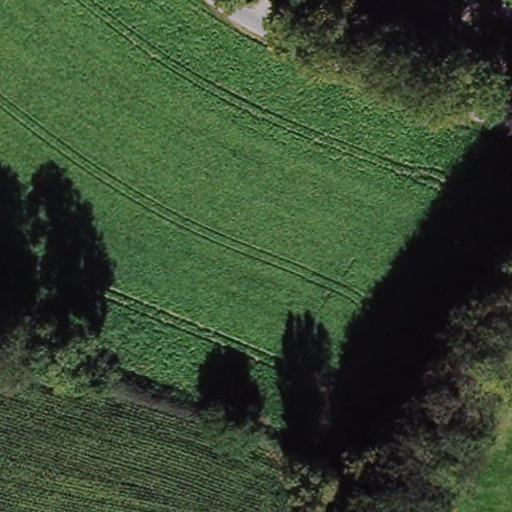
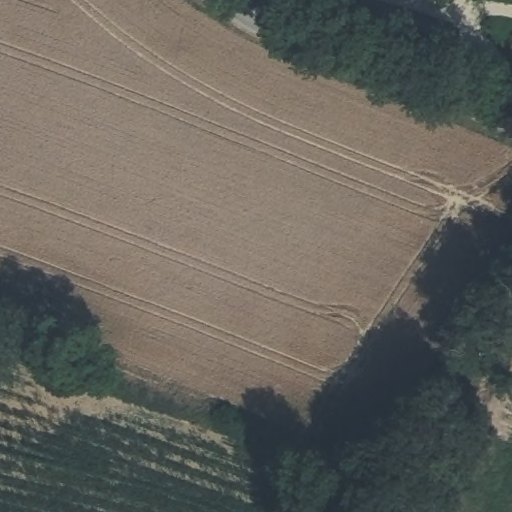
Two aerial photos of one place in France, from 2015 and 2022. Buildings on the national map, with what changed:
unchanged [(451,31),(445,52),(356,24),(363,3),(451,31)]

